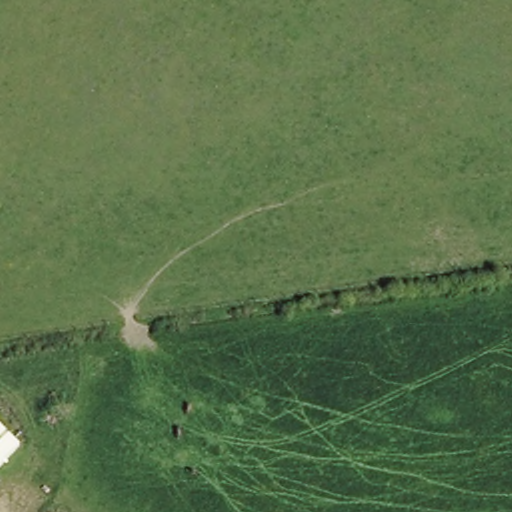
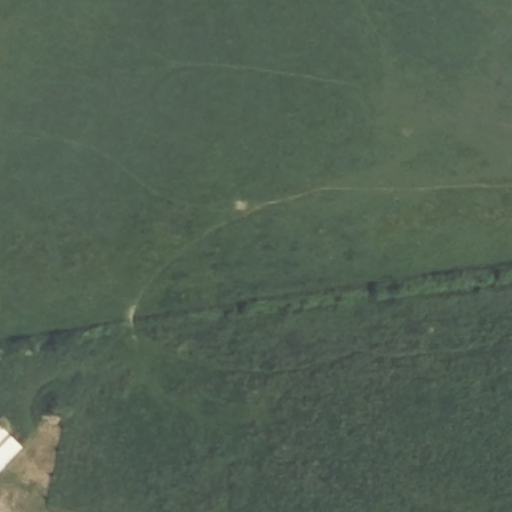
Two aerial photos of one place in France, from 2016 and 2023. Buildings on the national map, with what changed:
unchanged [(0,465),(0,426),(20,445),(0,465)]

